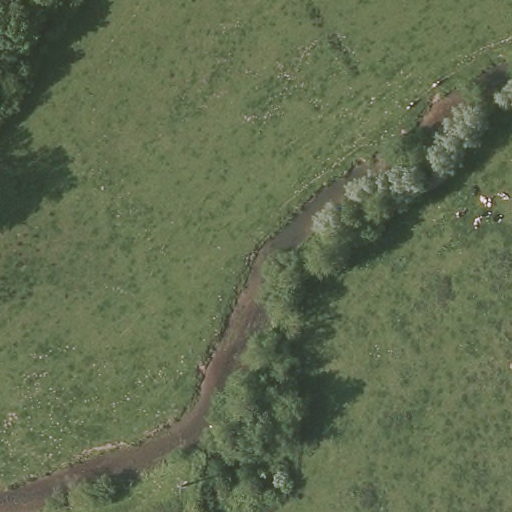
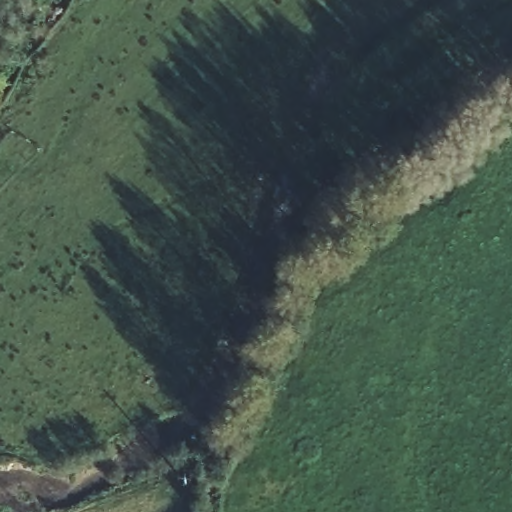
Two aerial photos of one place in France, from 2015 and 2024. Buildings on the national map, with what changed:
[]

